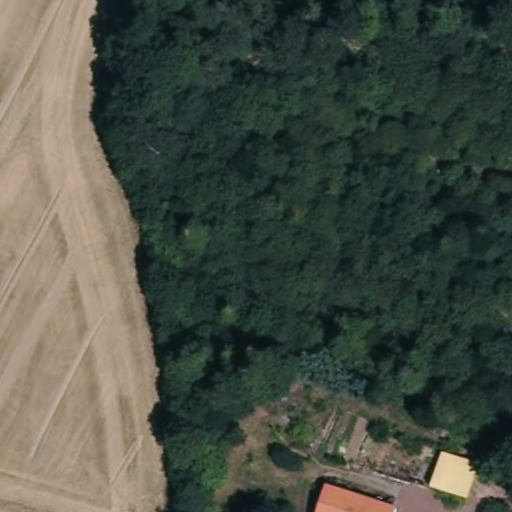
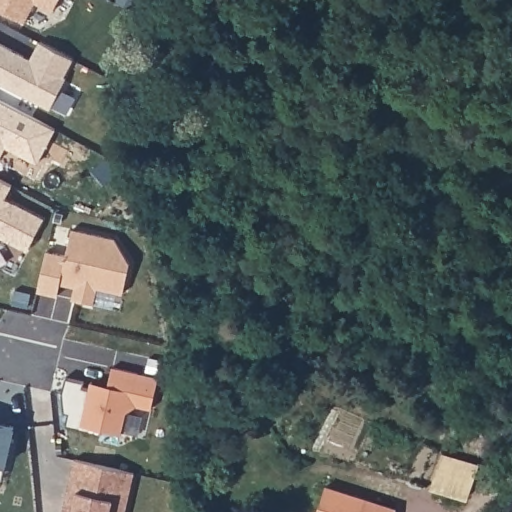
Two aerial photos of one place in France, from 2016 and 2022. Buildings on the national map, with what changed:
new [(52,11),(35,1),(25,22),(0,9),(0,0),(58,0),(52,11)]
new [(40,41),(72,58),(64,76),(66,77),(50,108),(0,82),(0,43),(31,59),(40,41)]
new [(37,162),(5,146),(0,155),(0,99),(55,128),(37,162)]
new [(5,197),(44,218),(27,251),(0,237),(0,178),(12,184),(5,197)]
new [(47,250),(66,255),(72,228),(114,238),(130,262),(122,293),(97,288),(93,304),(72,299),(74,287),(60,283),(57,296),(37,291),(47,250)]
new [(86,396),(85,402),(91,403),(92,397),(110,401),(114,382),(160,393),(152,424),(138,421),(127,427),(122,449),(104,445),(102,449),(67,441),(70,429),(66,428),(64,408),(67,392),(86,396)]
new [(5,464),(2,478),(0,477),(0,423),(14,426),(5,464)]
unchanged [(479,465),(467,501),(430,489),(441,453),(479,465)]
new [(72,500),(74,491),(67,490),(74,458),(134,472),(127,502),(124,512),(62,512),(65,498),(72,500)]
unchanged [(318,512),(329,484),(398,508),(397,512),(318,512)]

